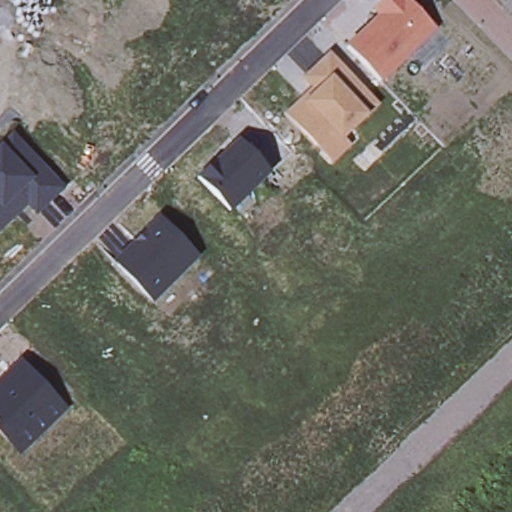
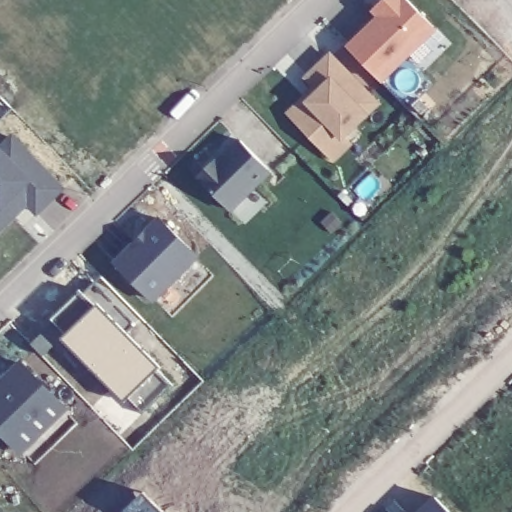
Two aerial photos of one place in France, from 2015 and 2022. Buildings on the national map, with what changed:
unchanged [(437,27),(383,83),(345,46),(373,16),(367,9),(378,0),(408,0),(437,27)]
unchanged [(350,69),(337,82),(367,110),(342,132),(353,149),(337,165),(285,114),(308,87),(300,77),(331,48),(350,69)]
unchanged [(39,215),(30,206),(0,231),(0,149),(16,135),(66,188),(39,215)]
unchanged [(272,172),(232,210),(198,177),(241,138),(272,172)]
unchanged [(200,257),(152,303),(112,260),(159,214),(200,257)]
new [(331,215),(341,225),(331,234),(322,225),(331,215)]
new [(156,367),(122,402),(60,339),(95,305),(156,367)]
unchanged [(8,440),(0,432),(0,384),(22,363),(54,395),(8,440)]
new [(160,512),(126,512),(144,495),(160,512)]
new [(449,512),(421,512),(435,498),(449,512)]

